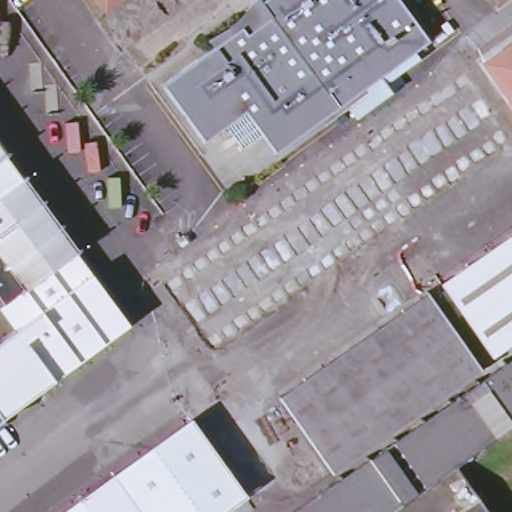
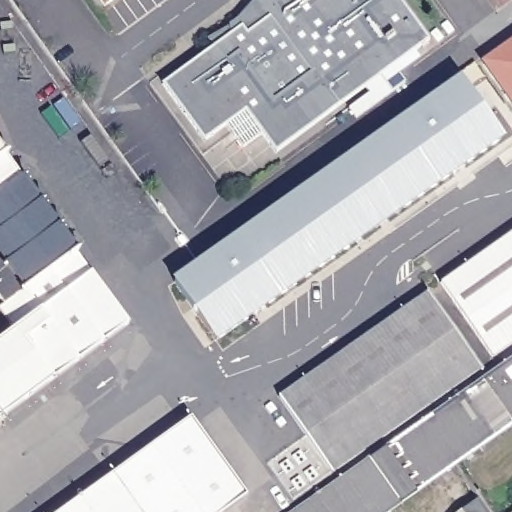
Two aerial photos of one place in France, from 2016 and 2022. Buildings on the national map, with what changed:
unchanged [(100,0),(118,0),(106,9),(100,0)]
unchanged [(260,3),(263,0),(400,0),(430,41),(275,156),(246,116),(204,146),(162,88),(265,11),(260,3)]
unchanged [(512,44),(512,104),(484,64),(512,44)]
new [(505,141),(216,345),(172,282),(461,79),(505,141)]
unchanged [(0,424),(0,345),(17,332),(1,311),(4,308),(6,306),(0,298),(0,146),(133,326),(58,381),(0,424)]
unchanged [(512,348),(502,356),(447,283),(512,235),(512,348)]
unchanged [(430,290),(483,363),(337,471),(283,398),(430,290)]
unchanged [(512,364),(512,430),(401,512),(311,512),(512,364)]
unchanged [(190,419),(245,493),(219,512),(64,512),(190,419)]
unchanged [(483,501),(492,512),(468,512),(483,501)]

